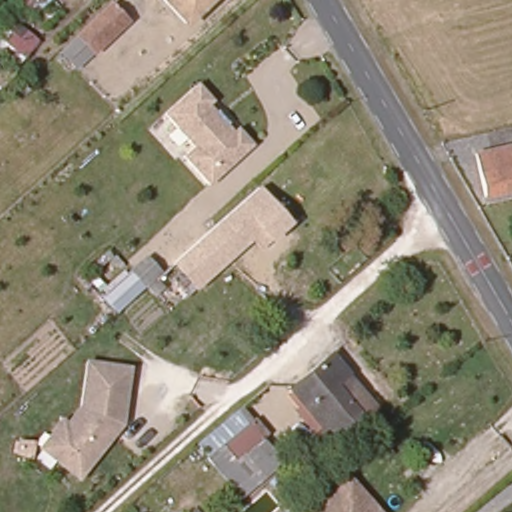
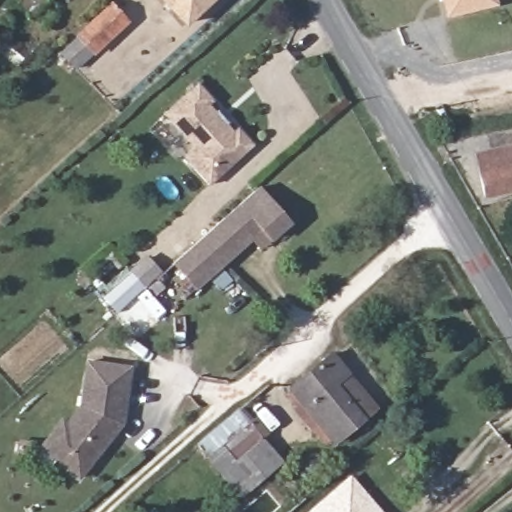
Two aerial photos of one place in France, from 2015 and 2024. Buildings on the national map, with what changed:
unchanged [(168,0),(211,0),(189,20),(168,0)]
new [(498,1),(448,13),(444,0),(498,0),(498,1)]
unchanged [(75,38),(113,1),(128,16),(90,55),(70,69),(56,54),(75,38)]
unchanged [(18,20),(39,39),(18,68),(0,53),(0,44),(18,20)]
unchanged [(214,97),(208,103),(217,113),(220,110),(231,121),(226,124),(234,133),(240,127),(255,144),(211,185),(185,155),(196,145),(164,112),(198,81),(214,97)]
unchanged [(478,149),(512,142),(512,190),(488,194),(478,149)]
unchanged [(290,223),(273,240),(264,230),(198,291),(173,262),(257,187),(290,223)]
unchanged [(120,310),(106,295),(133,271),(147,284),(120,310)]
unchanged [(377,413),(337,446),(289,393),(328,358),(377,413)]
unchanged [(63,421),(66,425),(82,407),(88,362),(131,369),(121,425),(112,437),(78,478),(60,464),(45,452),(41,448),(63,421)]
unchanged [(254,426),(213,462),(198,446),(239,410),(254,426)]
unchanged [(258,483),(242,497),(213,462),(254,426),(268,442),(284,460),(258,483)]
unchanged [(324,512),(352,490),(371,512),(324,512)]

